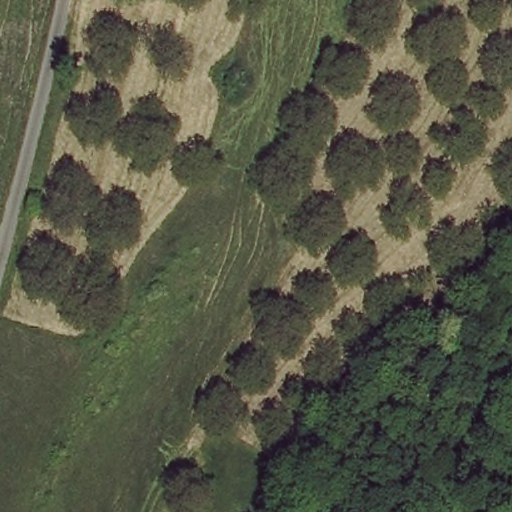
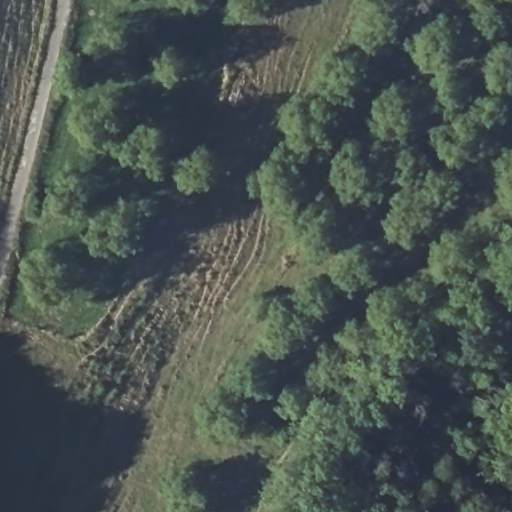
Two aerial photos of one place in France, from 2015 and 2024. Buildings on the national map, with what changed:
[]

